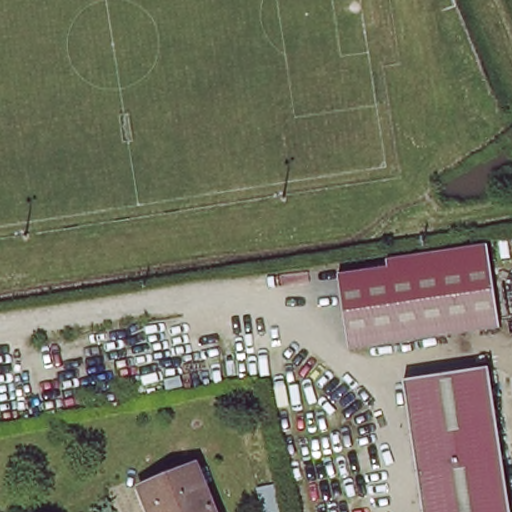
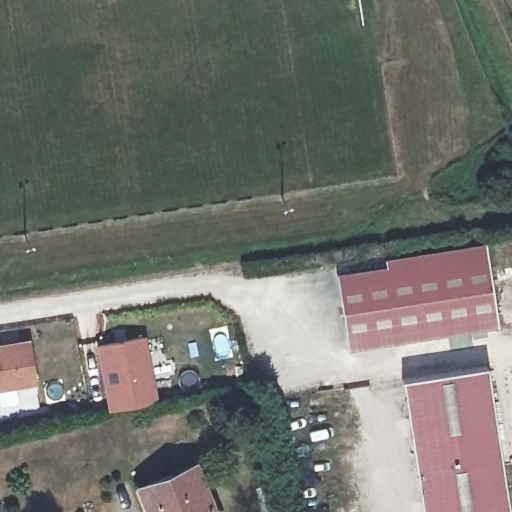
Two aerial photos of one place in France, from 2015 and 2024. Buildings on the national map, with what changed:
unchanged [(350,350),(336,279),(386,272),(386,265),(482,249),(495,323),(350,350)]
new [(145,336),(157,402),(108,410),(95,346),(145,336)]
new [(30,339),(38,385),(0,391),(0,344),(30,339)]
unchanged [(510,512),(422,512),(420,498),(395,378),(480,362),(510,512)]
unchanged [(210,512),(152,512),(142,482),(195,469),(210,512)]

